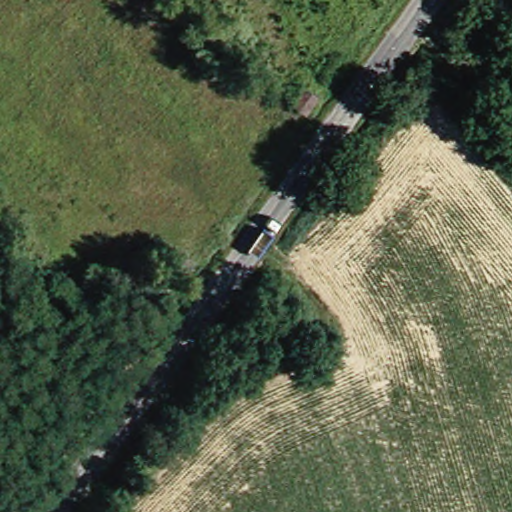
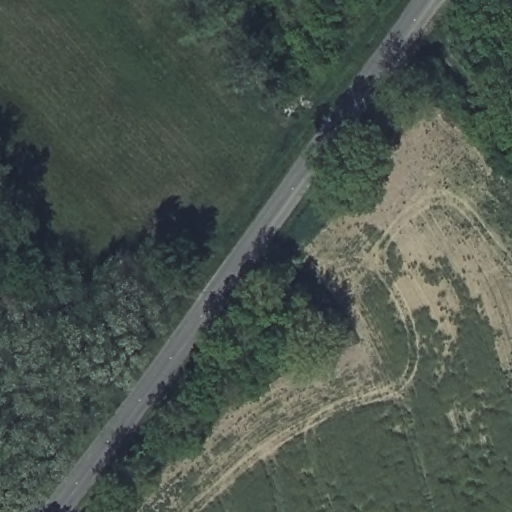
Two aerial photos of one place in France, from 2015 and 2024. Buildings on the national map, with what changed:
unchanged [(323,99),(310,116),(295,103),(310,86),(323,99)]

